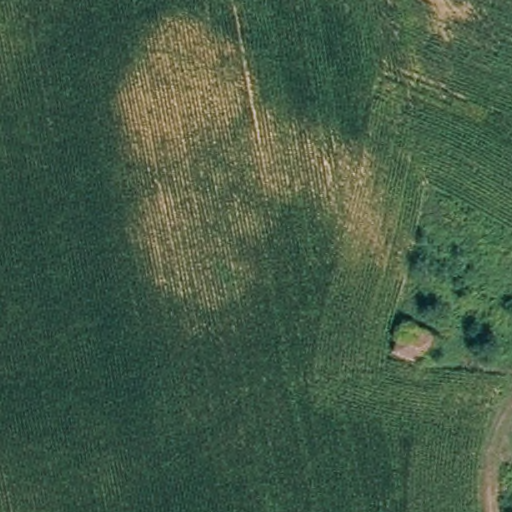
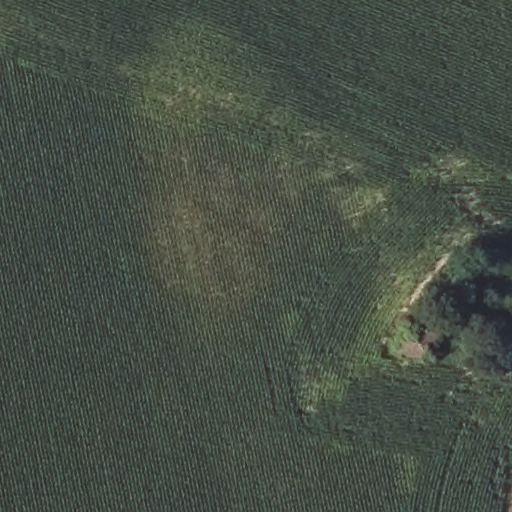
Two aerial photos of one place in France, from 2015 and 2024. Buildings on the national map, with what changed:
unchanged [(400,325),(429,334),(423,358),(393,348),(400,325)]

